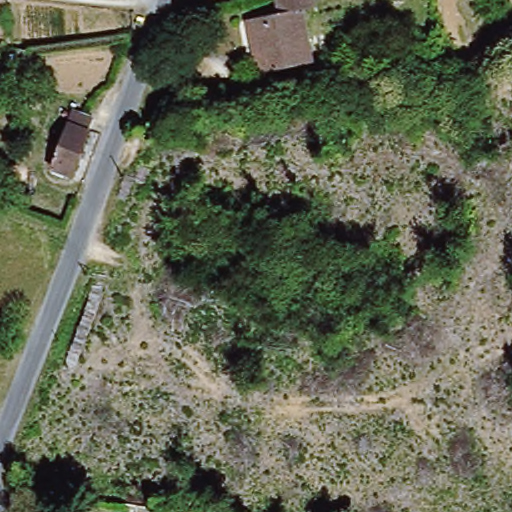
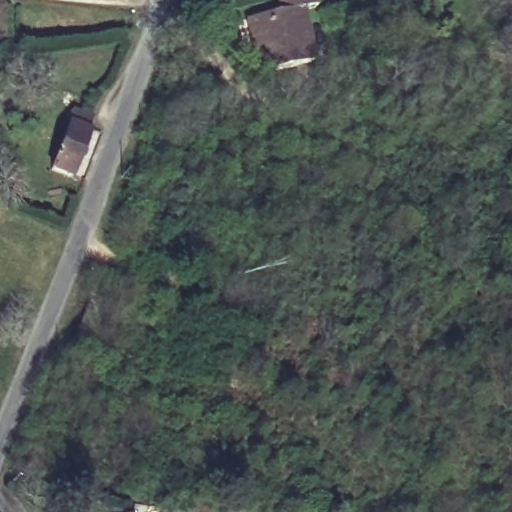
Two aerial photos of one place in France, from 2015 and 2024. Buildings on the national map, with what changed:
unchanged [(282,14),(279,0),(323,0),(325,5),(303,9),(315,65),(262,75),(251,20),(282,14)]
unchanged [(95,126),(76,175),(55,167),(73,119),(95,126)]

